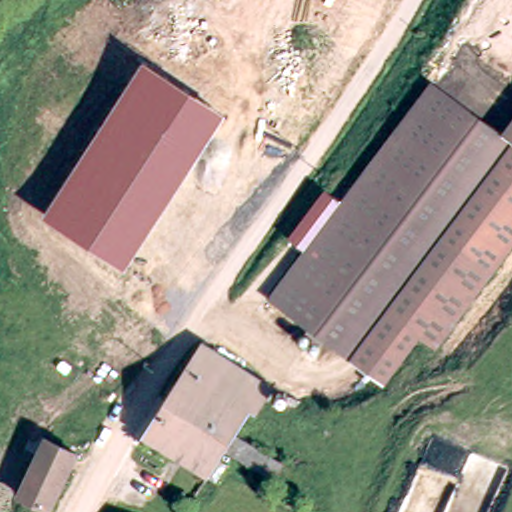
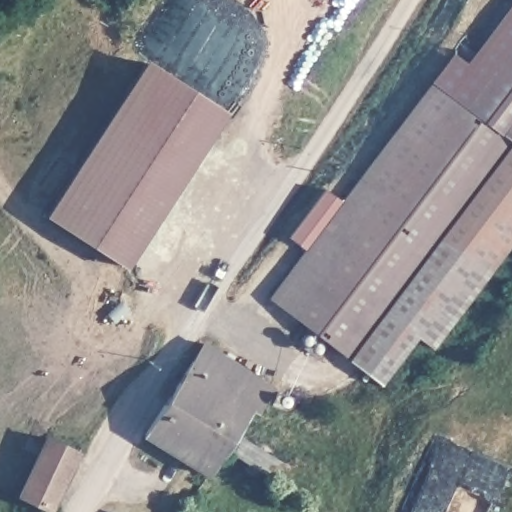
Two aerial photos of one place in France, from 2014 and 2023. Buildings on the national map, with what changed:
new [(511,133),(439,79),(457,54),(466,61),(512,2),(512,132),(511,133)]
unchanged [(227,114),(128,268),(45,213),(147,62),(227,114)]
unchanged [(444,350),(429,338),(392,386),(330,340),(317,355),(300,341),(312,326),(275,297),(439,79),(511,133),(512,132),(512,262),(444,350)]
unchanged [(257,417),(240,442),(229,460),(214,482),(155,440),(216,350),(269,387),(273,380),(285,389),(281,395),(262,420),(257,417)]
unchanged [(87,459),(60,508),(30,493),(39,475),(57,442),(87,459)]
unchanged [(240,442),(296,476),(286,494),(229,460),(240,442)]

